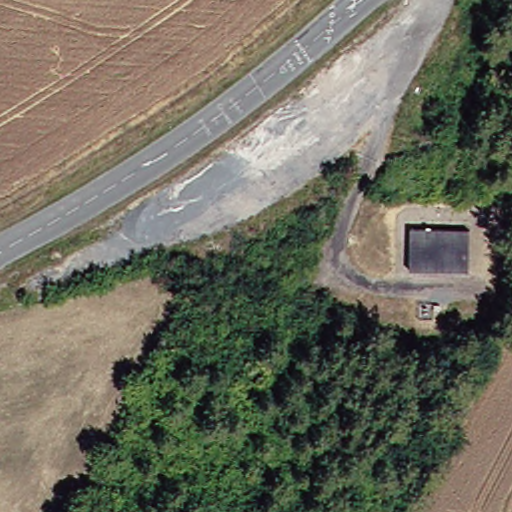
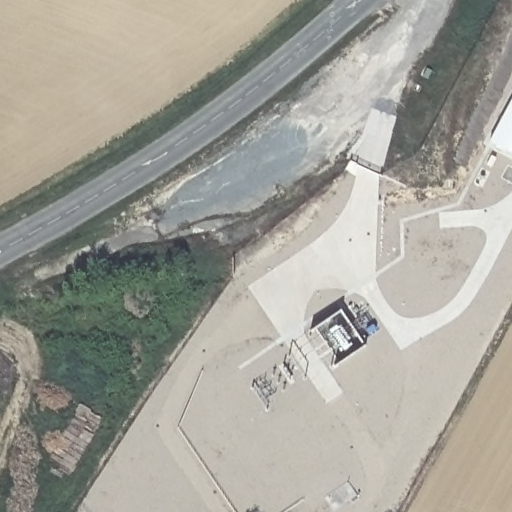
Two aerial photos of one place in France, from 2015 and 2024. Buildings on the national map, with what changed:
new [(512,100),(512,151),(490,139),(512,100)]
demolished [(415,271),(414,232),(471,233),(471,272),(415,271)]

